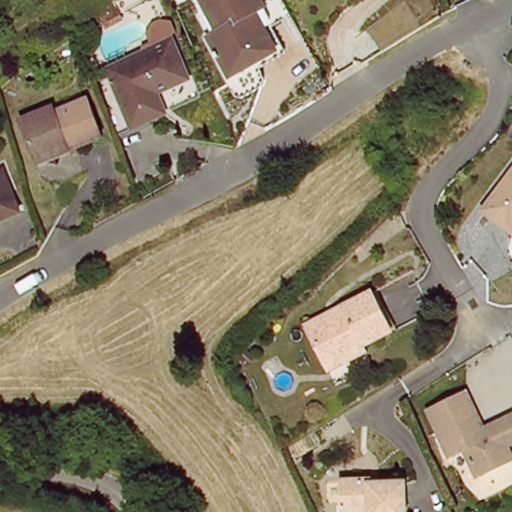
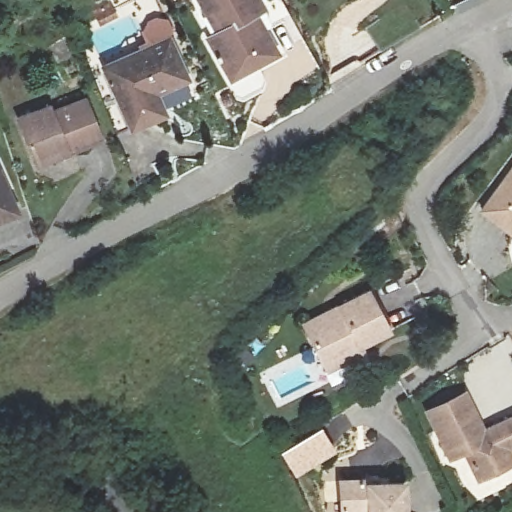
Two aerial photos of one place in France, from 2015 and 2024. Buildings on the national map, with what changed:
unchanged [(246,20),(254,38),(260,35),(271,58),(224,81),(203,39),(220,30),(211,11),(205,14),(198,0),(256,0),(262,11),(246,20)]
unchanged [(167,37),(186,73),(157,89),(168,112),(136,129),(105,70),(167,37)]
unchanged [(53,109),(56,114),(88,100),(108,139),(77,155),(73,148),(41,164),(22,125),(53,109)]
unchanged [(481,213),(512,152),(512,229),(481,213)]
unchanged [(23,217),(0,227),(0,177),(3,175),(23,217)]
unchanged [(326,366),(321,357),(304,320),(370,289),(389,329),(361,342),(363,348),(326,366)]
unchanged [(479,479),(473,468),(464,452),(450,459),(444,449),(420,404),(457,384),(477,421),(511,402),(512,405),(512,431),(501,436),(508,449),(492,458),(498,469),(479,479)]
new [(296,476),(280,451),(321,426),(336,451),(296,476)]
unchanged [(346,475),(375,480),(374,484),(408,490),(404,512),(339,512),(346,475)]

